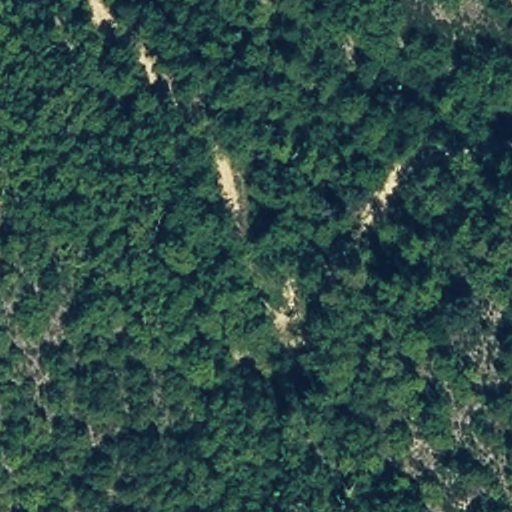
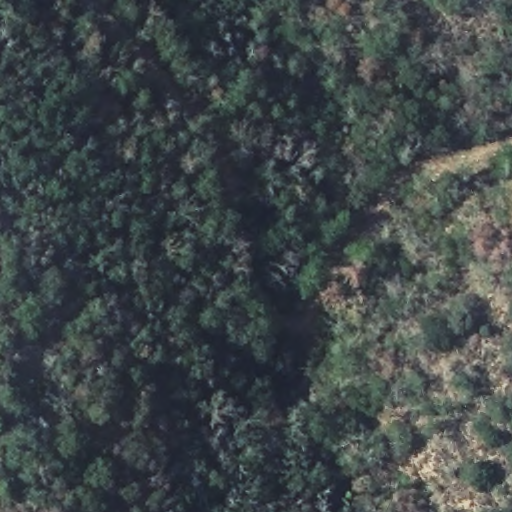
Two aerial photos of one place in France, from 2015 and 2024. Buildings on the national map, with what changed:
[]

